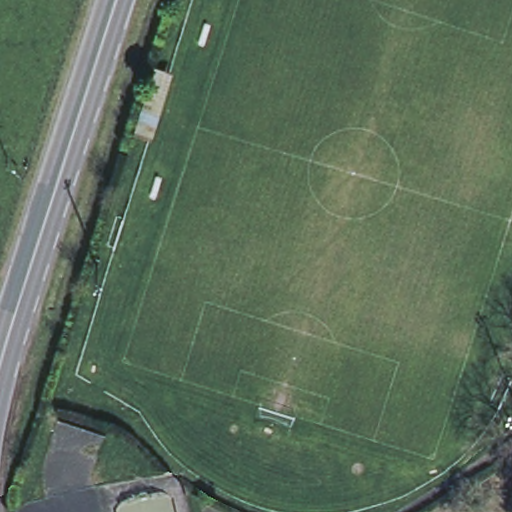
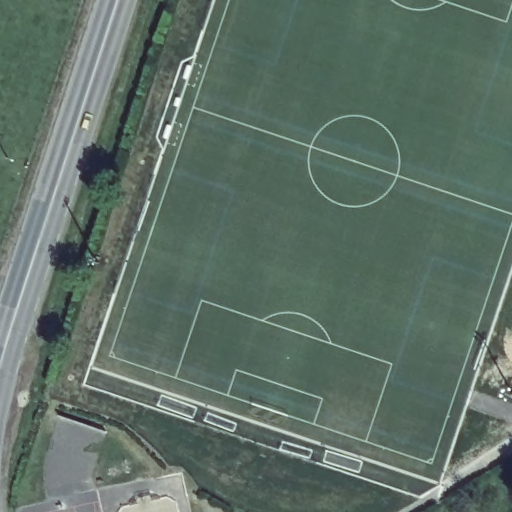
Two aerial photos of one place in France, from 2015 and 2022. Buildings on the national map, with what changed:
unchanged [(172,74),(152,137),(134,132),(154,66),(172,74)]

